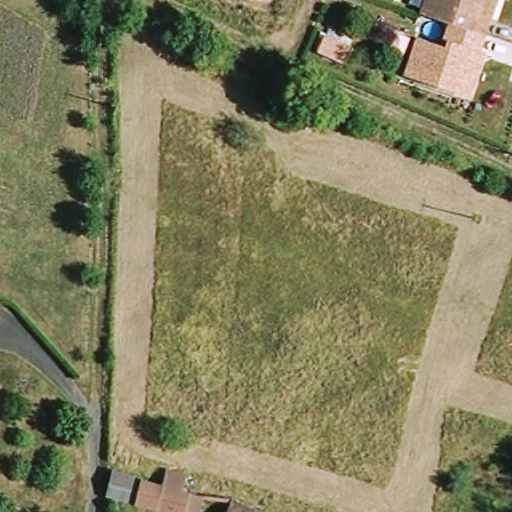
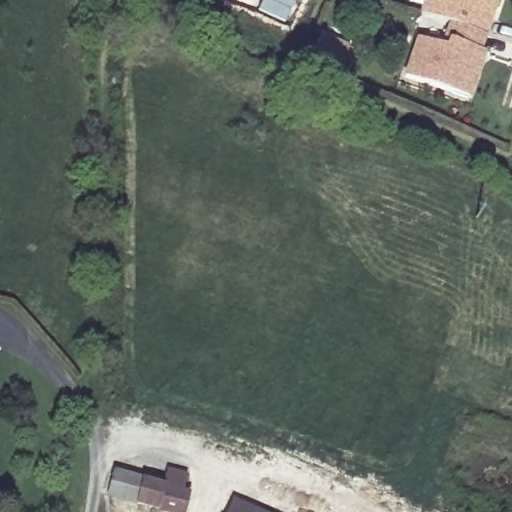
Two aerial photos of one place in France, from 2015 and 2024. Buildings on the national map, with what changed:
unchanged [(450,20),(422,10),(427,0),(498,0),(485,32),(450,20)]
unchanged [(478,51),(483,54),(467,97),(405,75),(417,40),(448,51),(452,41),(443,38),(450,20),(485,32),(478,51)]
unchanged [(341,55),(316,46),(323,30),(347,39),(341,55)]
unchanged [(185,482),(181,496),(191,498),(186,512),(152,512),(114,500),(115,475),(168,491),(172,478),(185,482)]
unchanged [(247,512),(234,512),(235,507),(247,512)]

